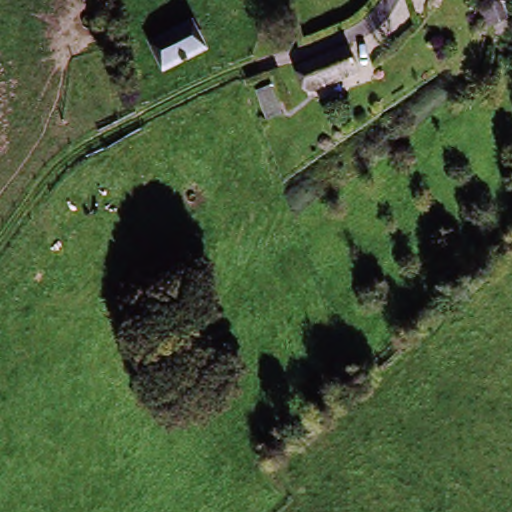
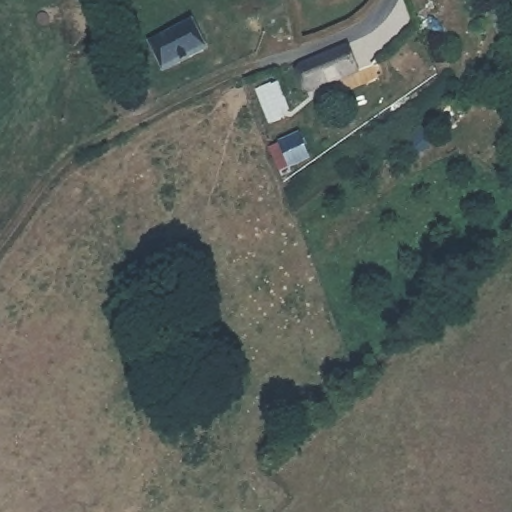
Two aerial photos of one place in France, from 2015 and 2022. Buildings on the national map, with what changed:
unchanged [(166,65),(152,39),(184,21),(198,47),(166,65)]
unchanged [(307,89),(299,65),(342,51),(350,74),(307,89)]
unchanged [(263,119),(250,82),(277,71),(291,107),(263,119)]

